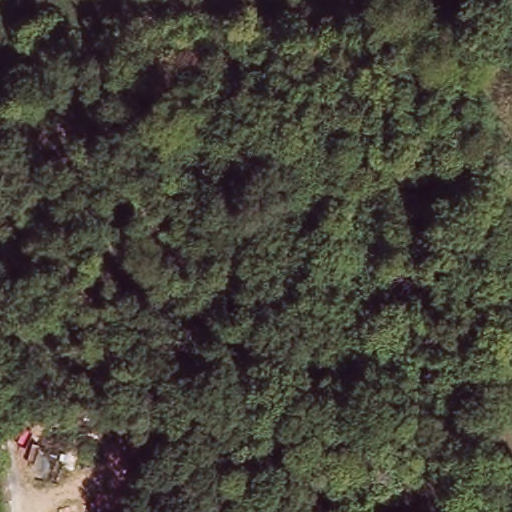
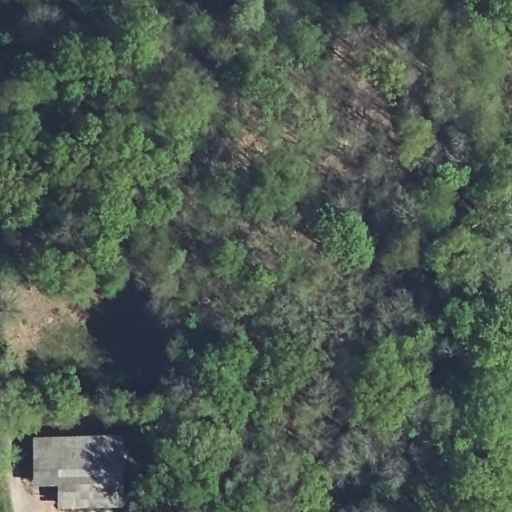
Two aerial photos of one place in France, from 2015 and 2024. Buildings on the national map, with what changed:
new [(119,440),(120,512),(52,512),(52,491),(28,492),(31,441),(119,440)]

